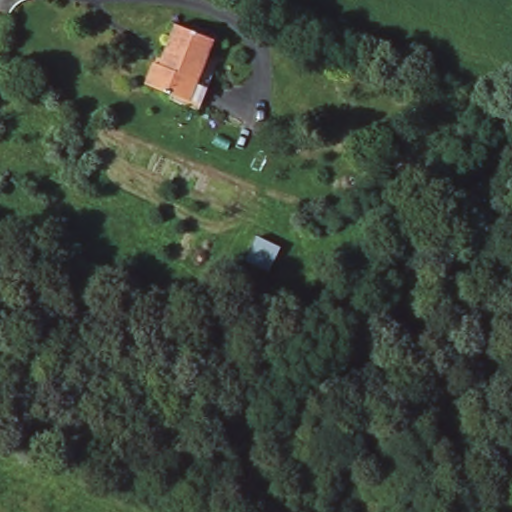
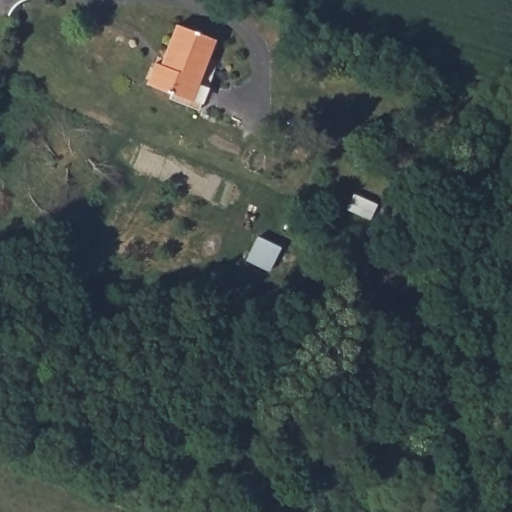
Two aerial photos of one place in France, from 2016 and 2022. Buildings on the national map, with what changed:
unchanged [(207,58),(215,62),(196,108),(166,96),(170,91),(146,81),(154,60),(161,62),(179,22),(215,37),(207,58)]

